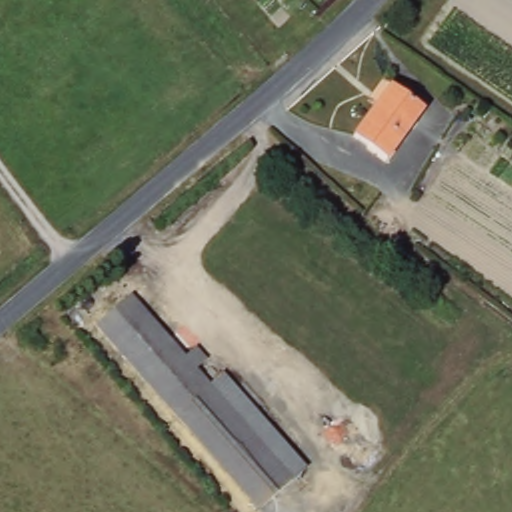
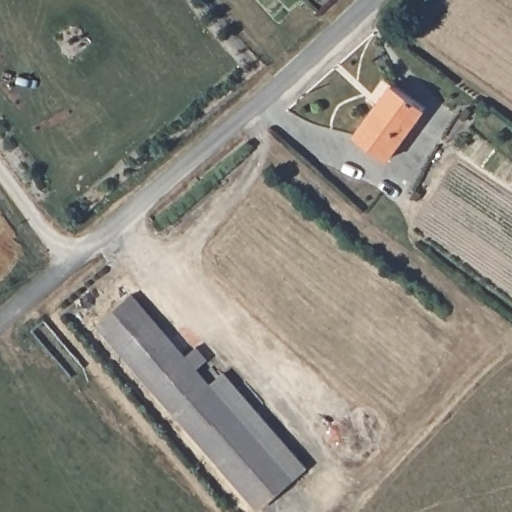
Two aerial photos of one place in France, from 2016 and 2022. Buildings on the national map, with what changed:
unchanged [(392,85),(425,108),(389,161),(355,138),(392,85)]
unchanged [(94,327),(131,294),(209,383),(223,369),(307,465),(259,511),(94,327)]

